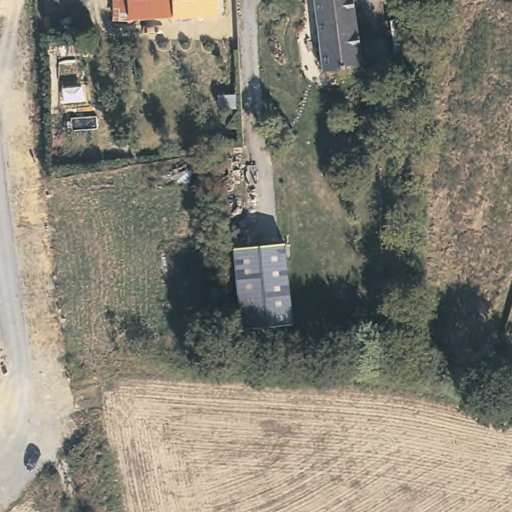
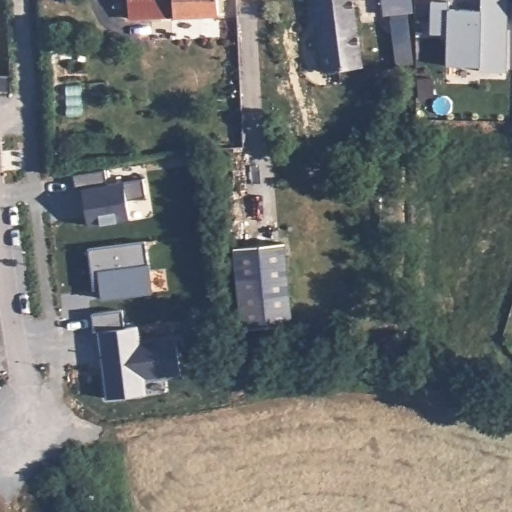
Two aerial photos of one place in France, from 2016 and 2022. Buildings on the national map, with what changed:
unchanged [(170,16),(126,19),(125,0),(169,0),(170,16)]
unchanged [(215,14),(170,16),(169,0),(214,0),(215,14)]
unchanged [(360,69),(318,72),(310,0),(350,0),(360,69)]
new [(388,17),(384,17),(382,0),(412,0),(413,13),(407,14),(412,64),(394,66),(388,17)]
new [(446,35),(427,34),(427,2),(448,2),(448,9),(481,9),(480,0),(508,0),(505,73),(478,72),(478,67),(444,67),(446,35)]
new [(105,169),(106,184),(144,178),(147,197),(127,200),(130,220),(86,226),(81,190),(75,191),(72,175),(105,169)]
new [(145,241),(147,264),(149,264),(152,294),(97,301),(97,290),(92,291),(87,249),(145,241)]
unchanged [(284,242),(293,326),(243,330),(232,248),(284,242)]
demolished [(209,248),(217,310),(197,312),(194,288),(171,292),(167,250),(209,248)]
new [(123,310),(125,327),(137,325),(140,340),(176,336),(181,375),(144,380),(146,393),(106,399),(97,332),(92,333),(90,315),(123,310)]

